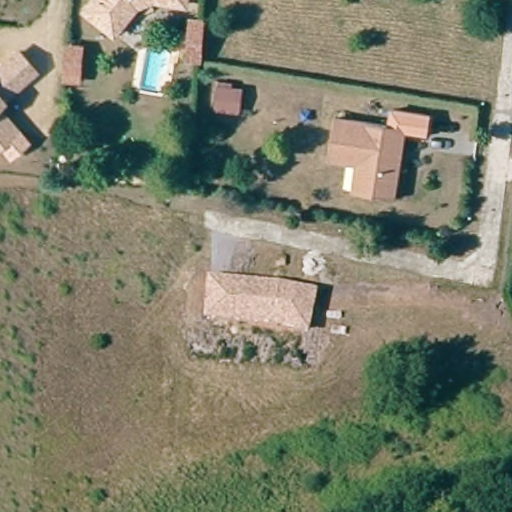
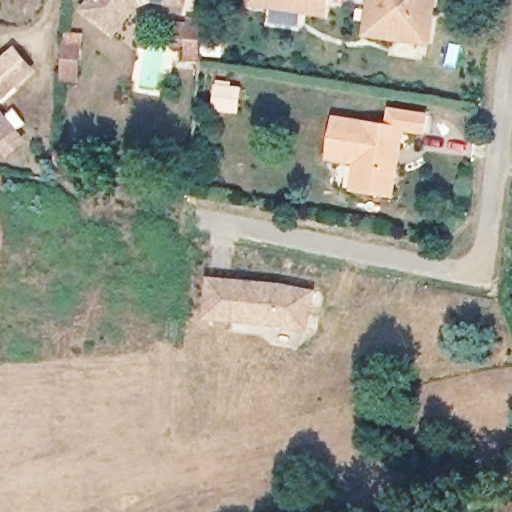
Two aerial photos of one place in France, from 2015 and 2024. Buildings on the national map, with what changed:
unchanged [(165,1),(158,1),(134,10),(116,30),(81,6),(86,0),(183,0),(182,2),(165,1)]
new [(329,19),(247,6),(248,0),(331,0),(329,19)]
new [(364,36),(369,0),(438,0),(431,46),(364,36)]
unchanged [(185,62),(188,17),(206,19),(202,64),(185,62)]
unchanged [(62,82),(65,43),(86,45),(82,83),(62,82)]
unchanged [(21,50),(37,70),(0,100),(0,68),(21,50)]
unchanged [(212,109),(216,80),(234,81),(233,86),(243,87),(240,113),(212,109)]
unchanged [(390,106),(430,113),(427,135),(402,133),(404,124),(388,121),(390,106)]
unchanged [(16,130),(0,142),(0,109),(16,130)]
unchanged [(357,157),(356,156),(330,152),(335,115),(404,124),(401,145),(398,161),(394,192),(360,188),(353,186),(357,157)]
unchanged [(207,278),(280,282),(319,290),(310,335),(274,326),(204,321),(207,278)]

